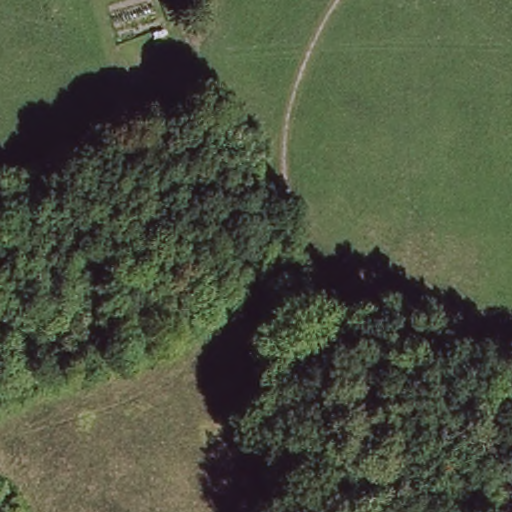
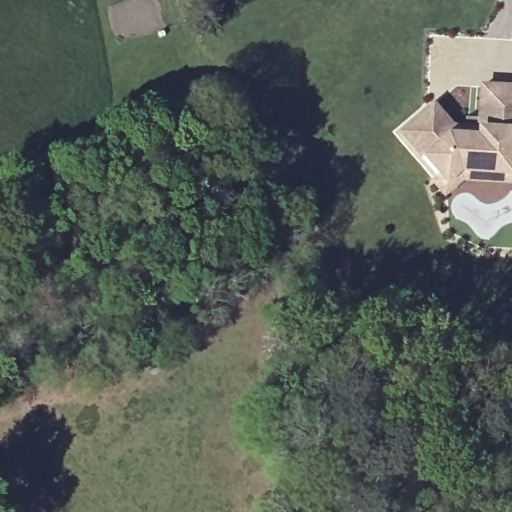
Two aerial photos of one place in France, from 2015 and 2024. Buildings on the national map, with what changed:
new [(433,101),(453,125),(477,125),(480,84),(512,86),(512,185),(464,181),(444,198),(427,180),(433,175),(418,158),(397,134),(433,101)]

